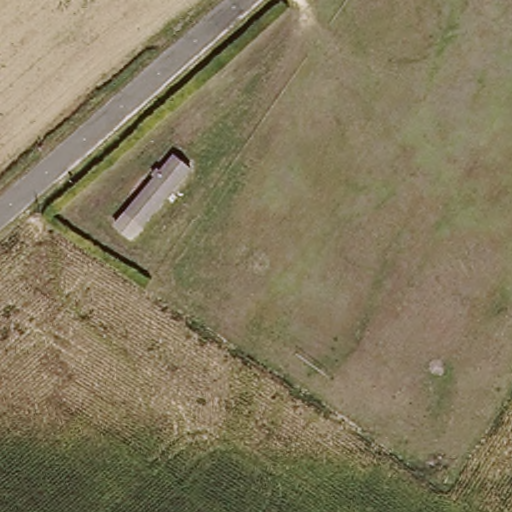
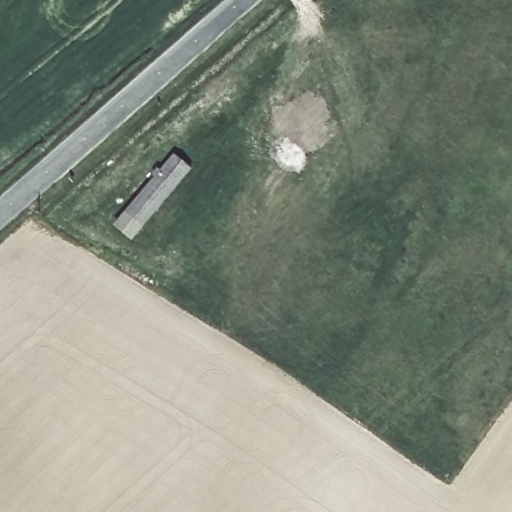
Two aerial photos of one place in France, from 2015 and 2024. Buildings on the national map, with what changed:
unchanged [(115,217),(173,145),(194,163),(136,234),(115,217)]

